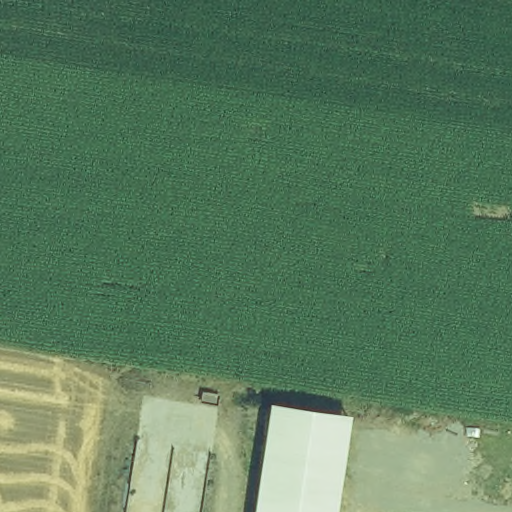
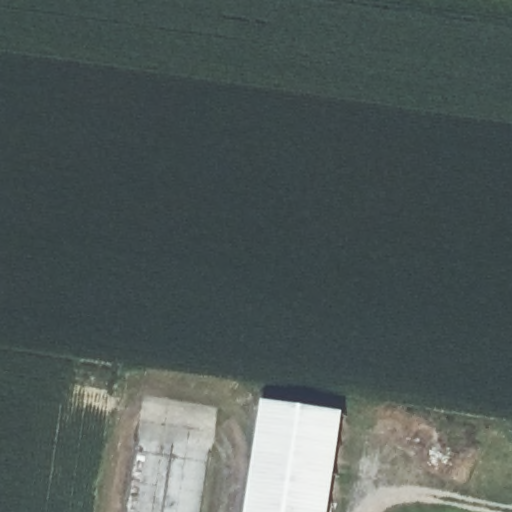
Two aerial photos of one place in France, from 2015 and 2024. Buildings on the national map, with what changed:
unchanged [(337,512),(257,512),(257,508),(259,501),(274,401),(352,413),(337,512)]

